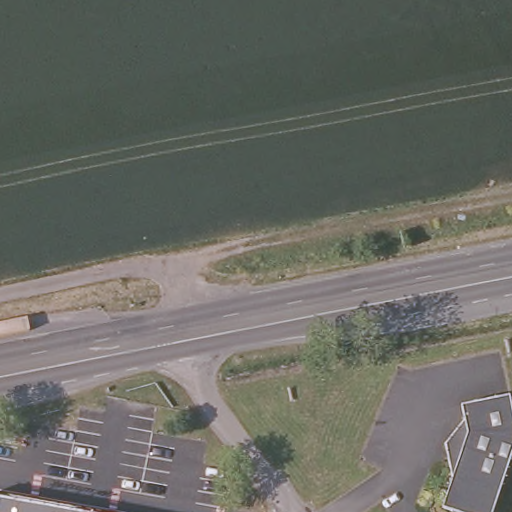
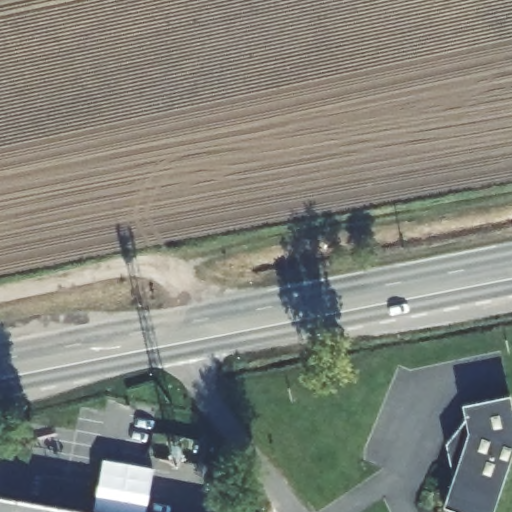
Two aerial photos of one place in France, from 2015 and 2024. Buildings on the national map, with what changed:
unchanged [(499,512),(443,512),(450,486),(440,471),(450,430),(462,425),(460,405),(505,396),(512,422),(512,464),(499,512)]
new [(154,468),(145,512),(92,512),(101,459),(154,468)]
unchanged [(92,512),(0,512),(0,504),(1,498),(92,512)]

